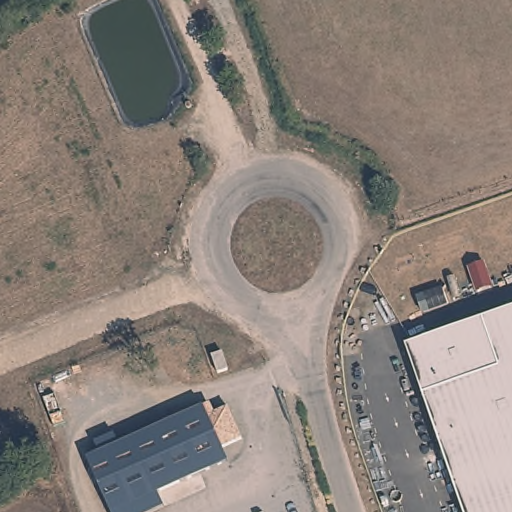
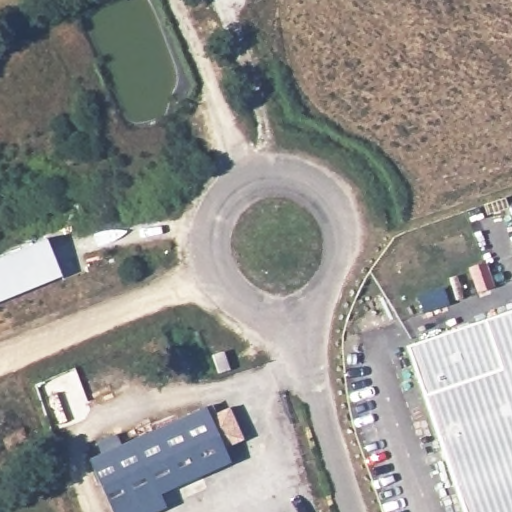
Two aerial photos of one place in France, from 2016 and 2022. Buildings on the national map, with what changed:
unchanged [(511,215),(512,215),(512,219),(511,215)]
new [(60,276),(0,301),(0,255),(45,236),(60,276)]
unchanged [(408,345),(512,309),(512,512),(465,512),(458,490),(408,345)]
unchanged [(198,368),(208,365),(214,383),(204,386),(198,368)]
unchanged [(204,420),(224,411),(238,442),(219,451),(224,465),(154,496),(160,510),(156,512),(105,512),(83,462),(200,410),(204,420)]

